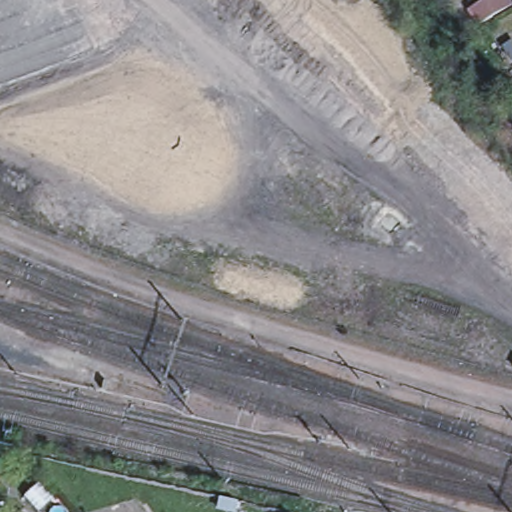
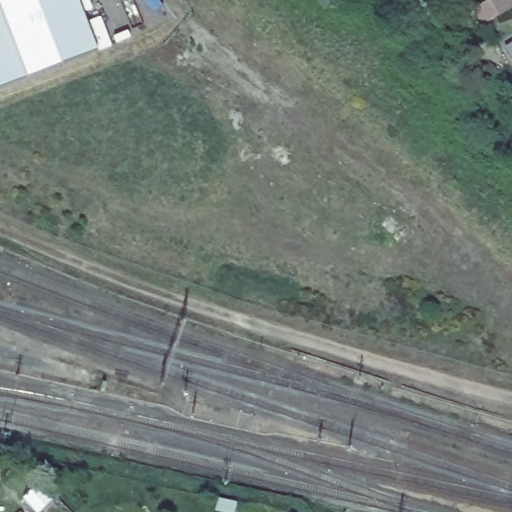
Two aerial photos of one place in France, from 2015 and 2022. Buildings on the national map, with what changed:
new [(0,87),(0,0),(78,0),(97,49),(0,87)]
unchanged [(512,8),(484,24),(475,9),(491,0),(509,0),(512,5),(512,8)]
unchanged [(47,512),(36,512),(28,504),(23,498),(38,482),(57,502),(47,512)]

